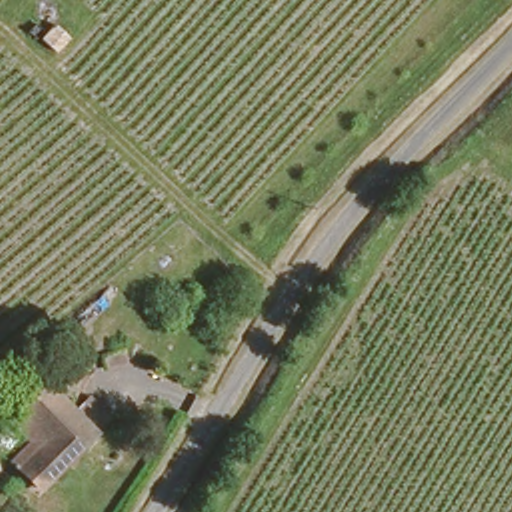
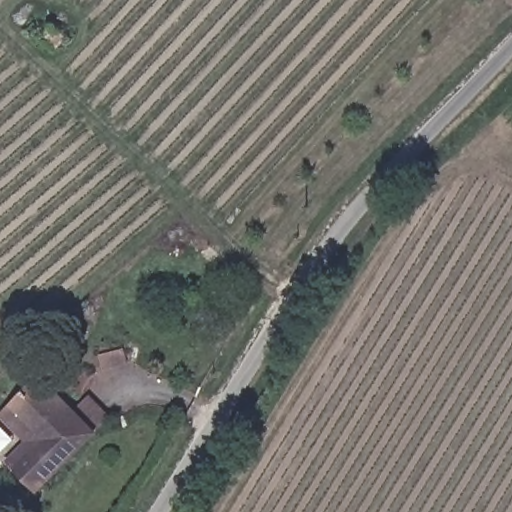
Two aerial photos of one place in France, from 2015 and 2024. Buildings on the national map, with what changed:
unchanged [(51,51),(36,36),(51,21),(66,36),(51,51)]
unchanged [(33,444),(7,413),(14,406),(46,379),(96,438),(35,489),(19,470),(13,463),(33,444)]

